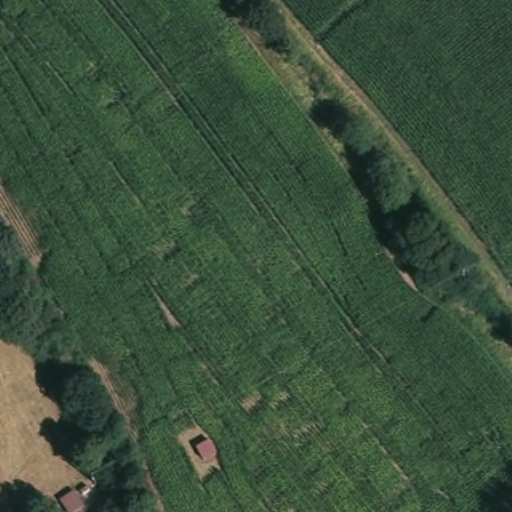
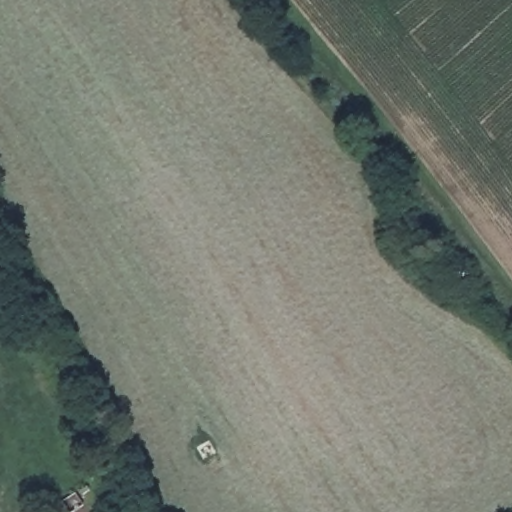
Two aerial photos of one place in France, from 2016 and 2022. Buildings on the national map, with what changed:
unchanged [(76,494),(83,506),(74,512),(67,512),(62,503),(76,494)]

